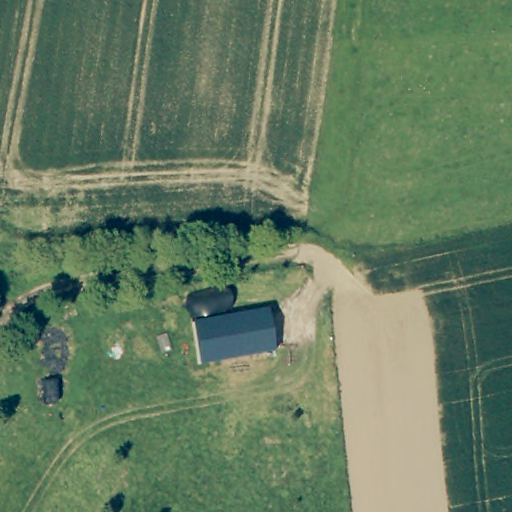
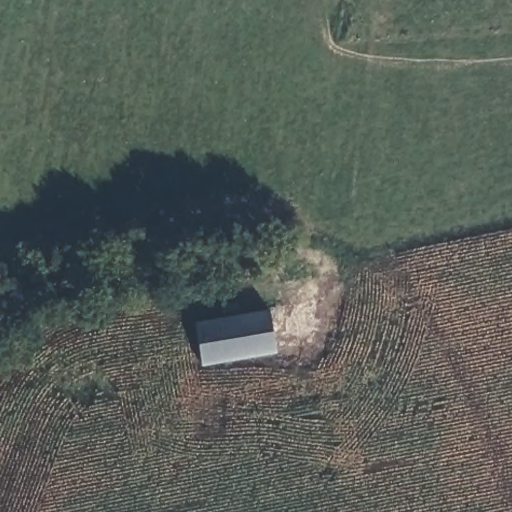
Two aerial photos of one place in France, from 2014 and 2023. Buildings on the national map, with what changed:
unchanged [(267,310),(275,352),(200,365),(194,322),(267,310)]

